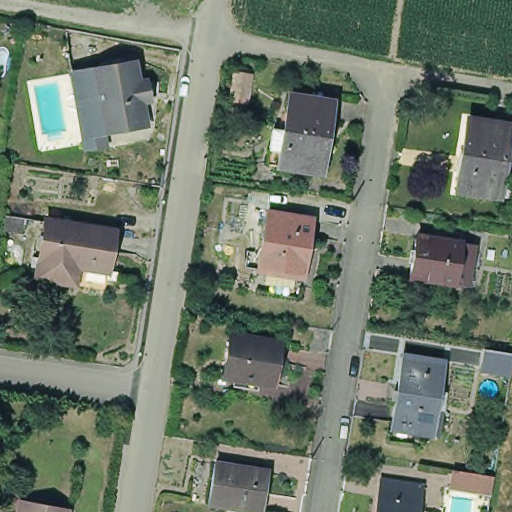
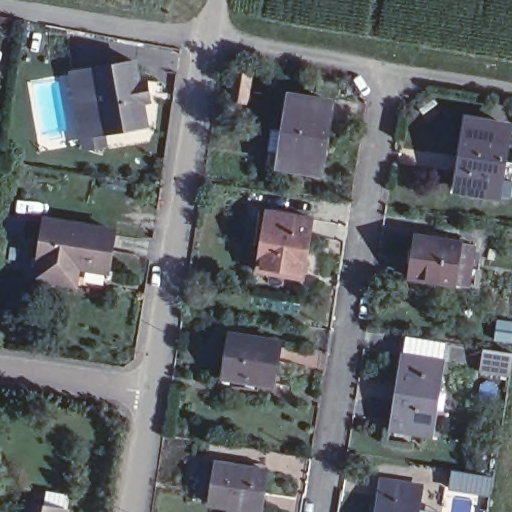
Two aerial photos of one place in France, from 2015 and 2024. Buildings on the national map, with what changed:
unchanged [(126,61),(130,81),(137,80),(141,100),(133,101),(136,119),(93,127),(82,69),(126,61)]
unchanged [(273,145),(275,132),(281,133),(284,115),(289,115),(291,97),(332,103),(322,172),(281,166),(270,164),(273,145)]
unchanged [(502,198),(489,196),(448,189),(460,119),(501,126),(495,161),(507,163),(502,198)]
unchanged [(309,213),(299,273),(255,266),(265,206),(309,213)]
unchanged [(66,285),(27,279),(38,219),(107,231),(100,271),(97,290),(66,285)]
unchanged [(456,286),(442,284),(397,277),(404,237),(416,239),(417,232),(435,235),(434,241),(447,243),(462,246),(456,286)]
unchanged [(231,376),(232,370),(221,368),(227,326),(276,334),(270,376),(256,374),(255,380),(231,376)]
unchanged [(509,349),(507,369),(477,365),(479,345),(509,349)]
unchanged [(389,420),(393,397),(383,395),(386,378),(396,380),(400,349),(441,356),(429,431),(410,428),(389,424),(389,420)]
unchanged [(205,499),(212,458),(265,467),(258,508),(254,507),(253,512),(224,512),(226,503),(205,499)]
unchanged [(491,472),(487,489),(455,486),(456,468),(491,472)]
unchanged [(421,502),(410,500),(408,512),(368,512),(374,477),(412,483),(423,485),(421,502)]
unchanged [(60,502),(57,512),(0,512),(0,492),(13,494),(60,502)]

